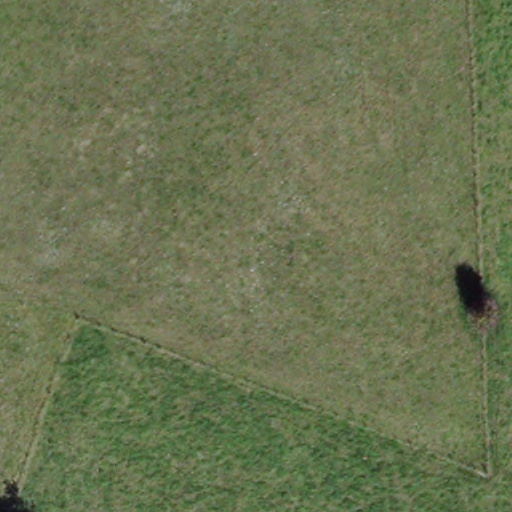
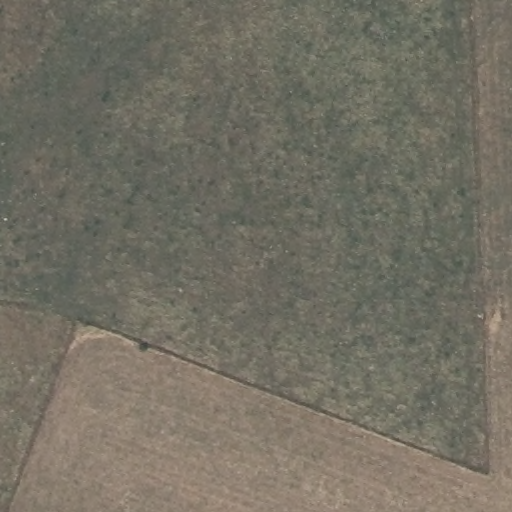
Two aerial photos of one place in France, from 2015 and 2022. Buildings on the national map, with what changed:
[]

